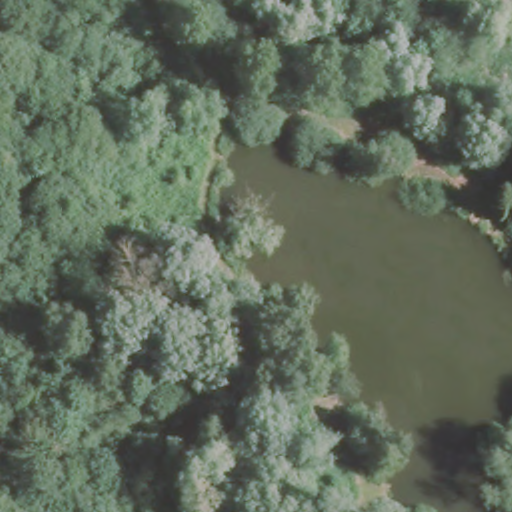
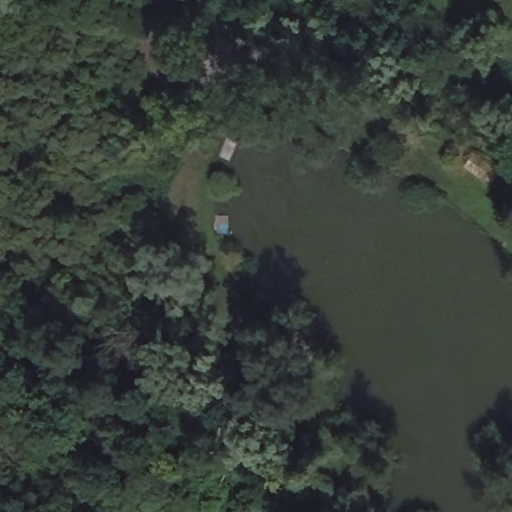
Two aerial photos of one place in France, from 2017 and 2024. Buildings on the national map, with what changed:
unchanged [(506,175),(496,190),(459,160),(469,146),(506,175)]

